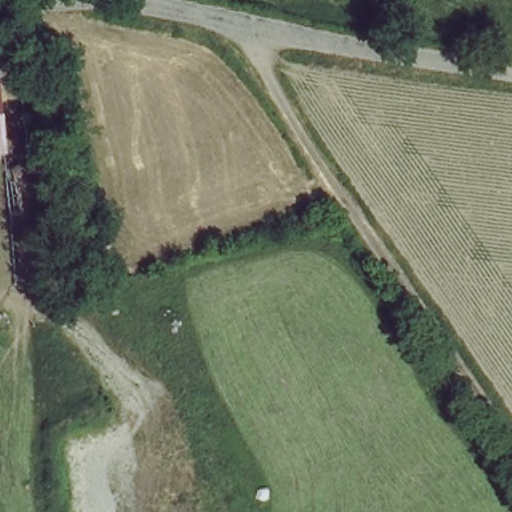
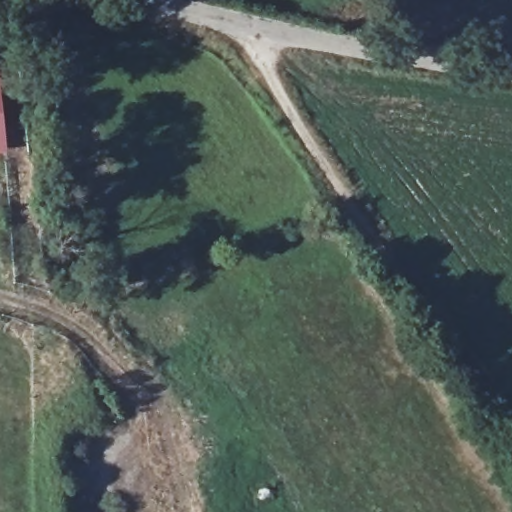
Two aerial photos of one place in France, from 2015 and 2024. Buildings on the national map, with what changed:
unchanged [(6,154),(0,155),(0,106),(6,154)]

